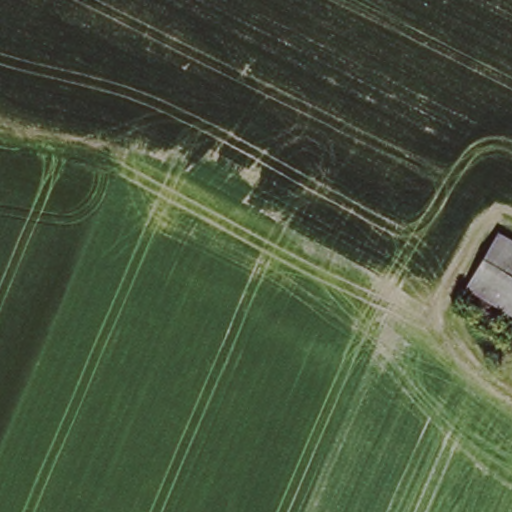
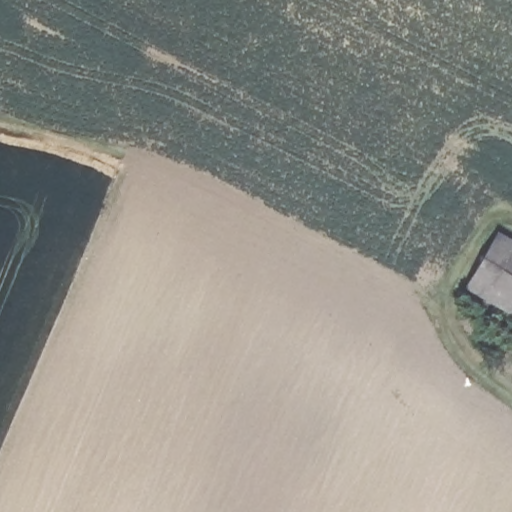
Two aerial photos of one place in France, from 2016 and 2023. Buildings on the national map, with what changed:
unchanged [(497,234),(512,243),(512,315),(466,287),(497,234)]

